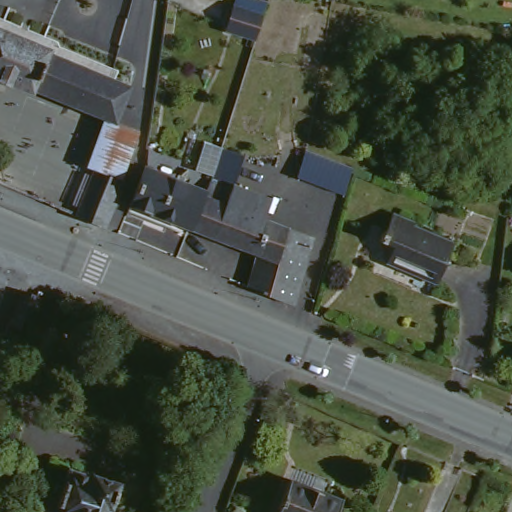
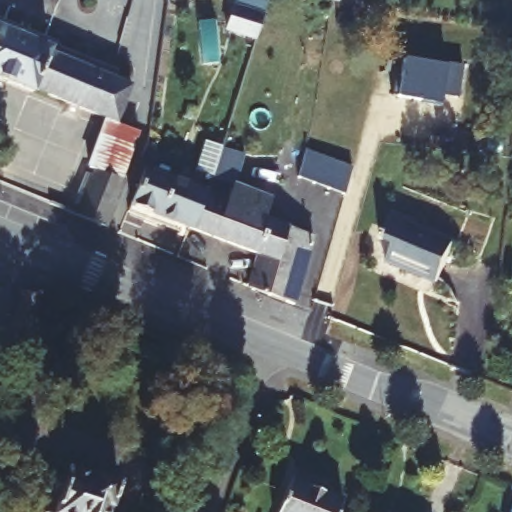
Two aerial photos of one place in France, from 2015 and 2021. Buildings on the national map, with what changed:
unchanged [(232,26),(240,2),(269,11),(261,35),(232,26)]
unchanged [(108,123),(78,111),(34,93),(32,96),(26,94),(11,88),(10,90),(7,88),(0,85),(0,30),(10,35),(18,38),(26,41),(35,45),(37,45),(41,47),(51,51),(50,54),(100,74),(131,86),(116,124),(115,126),(108,123)]
new [(398,76),(402,77),(406,58),(425,61),(425,59),(465,66),(460,96),(445,94),(442,105),(423,103),(424,100),(395,95),(398,76)]
unchanged [(81,207),(85,197),(96,172),(87,169),(108,123),(115,126),(142,136),(121,183),(124,185),(114,209),(105,229),(77,217),(81,207)]
unchanged [(221,149),(248,156),(235,190),(234,192),(229,206),(204,197),(205,192),(221,149)]
unchanged [(306,150),(351,165),(343,196),(297,177),(306,150)]
unchanged [(190,229),(185,228),(180,226),(176,225),(173,231),(129,213),(144,175),(146,168),(205,192),(204,197),(193,230),(190,229)]
unchanged [(247,287),(257,254),(193,230),(204,197),(229,206),(234,192),(235,190),(267,202),(262,219),(286,228),(267,295),(247,287)]
unchanged [(415,224),(412,228),(453,245),(432,291),(386,270),(386,256),(383,247),(379,244),(382,235),(383,235),(393,215),(415,224)]
unchanged [(267,295),(286,228),(289,229),(311,238),(294,306),(267,295)]
unchanged [(9,329),(20,297),(33,301),(22,334),(9,329)]
unchanged [(50,503),(60,506),(63,496),(56,493),(61,476),(70,479),(72,470),(86,475),(87,475),(95,478),(96,475),(99,476),(124,483),(115,508),(112,507),(111,512),(48,512),(50,503)]
unchanged [(284,485),(320,499),(335,505),(332,512),(273,512),(279,497),(284,485)]

